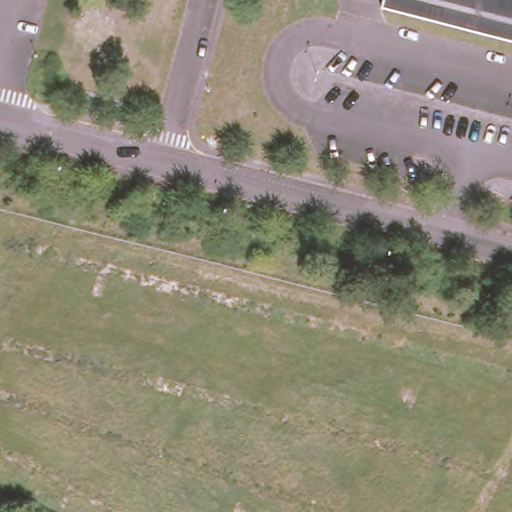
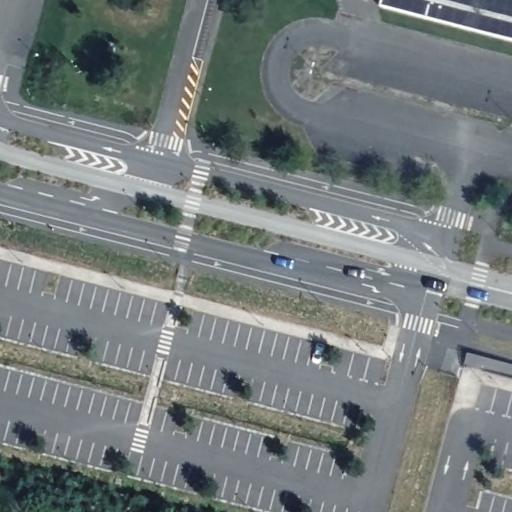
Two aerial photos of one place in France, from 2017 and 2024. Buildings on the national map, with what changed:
unchanged [(380,2),(381,0),(512,0),(512,36),(380,2)]

